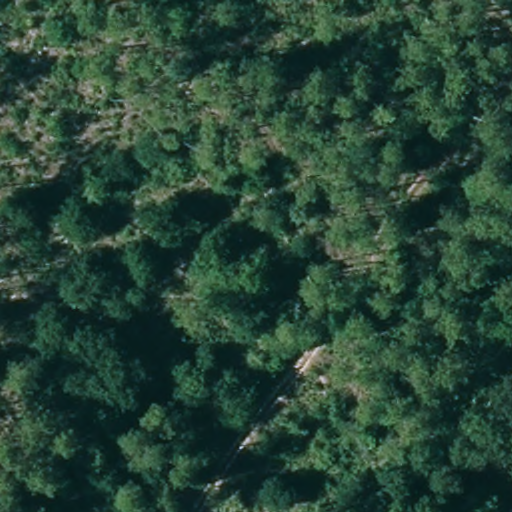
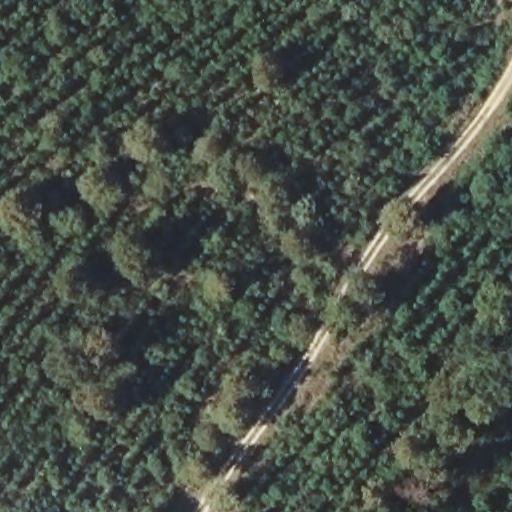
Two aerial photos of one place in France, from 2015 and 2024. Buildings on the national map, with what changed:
[]

